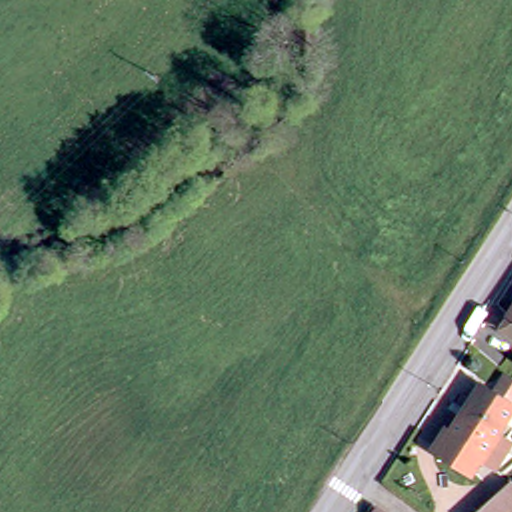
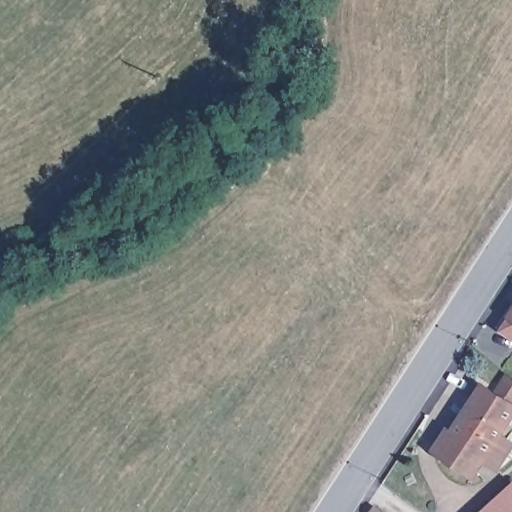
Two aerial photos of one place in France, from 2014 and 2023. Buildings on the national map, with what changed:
unchanged [(512,314),(512,330),(505,325),(512,314)]
unchanged [(452,433),(455,436),(486,387),(512,403),(512,417),(477,473),(440,451),(452,433)]
unchanged [(512,496),(512,512),(494,512),(512,496)]

